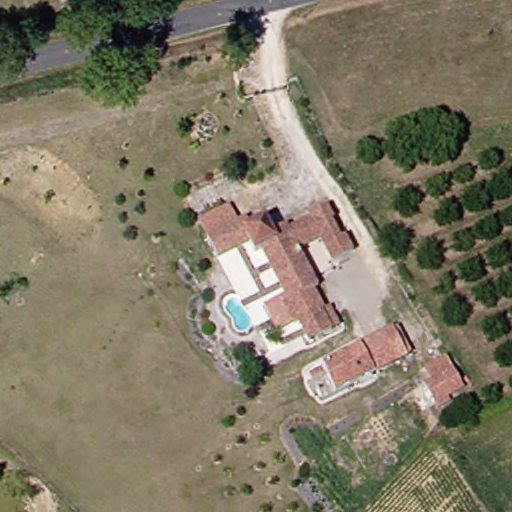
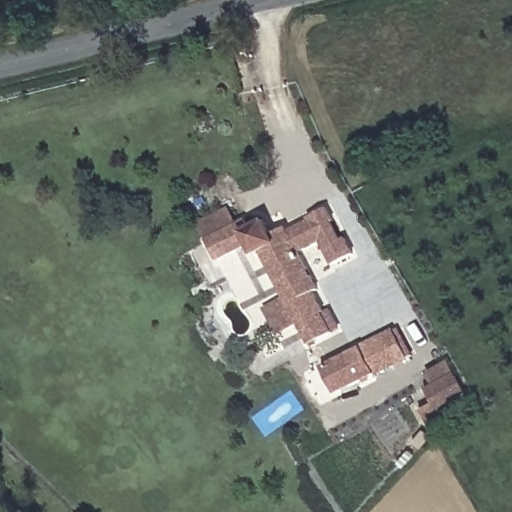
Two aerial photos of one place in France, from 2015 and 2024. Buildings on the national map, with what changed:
unchanged [(204,174),(212,190),(182,206),(174,190),(204,174)]
unchanged [(339,331),(332,334),(310,347),(300,327),(295,330),(284,309),(289,307),(260,255),(254,259),(247,248),(217,265),(205,245),(197,229),(227,212),(236,229),(244,224),(249,232),(263,225),(270,238),(284,230),(286,235),(308,223),(307,220),(325,210),(332,223),(329,224),(339,242),(344,239),(352,255),(332,266),(319,243),(297,255),(317,292),(313,294),(324,314),(328,312),(339,331)]
unchanged [(393,331),(408,358),(377,375),(362,348),(393,331)]
unchanged [(377,375),(337,397),(322,369),(362,348),(377,375)]
unchanged [(439,406),(428,387),(440,381),(434,369),(449,361),(456,372),(466,391),(439,406)]

